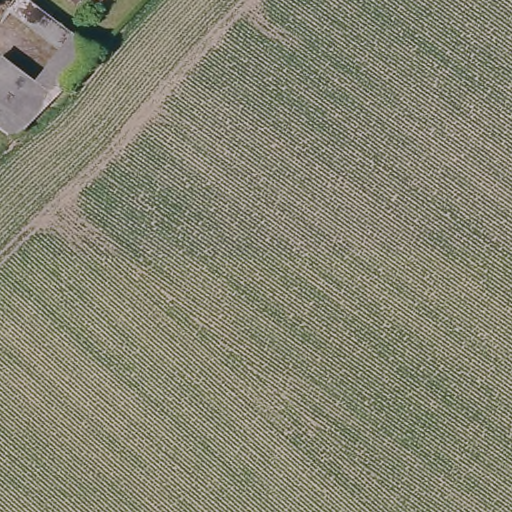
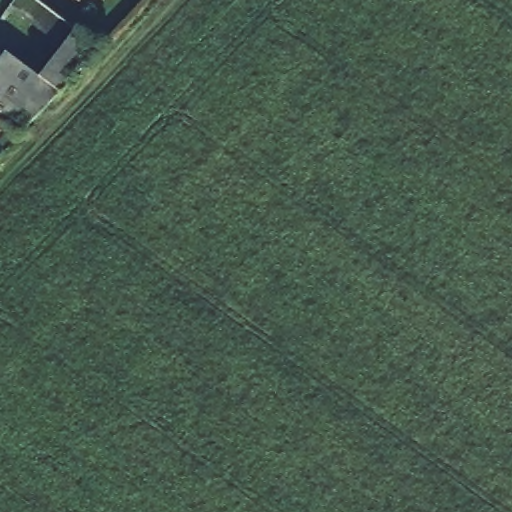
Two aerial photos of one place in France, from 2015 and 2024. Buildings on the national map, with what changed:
unchanged [(66,0),(77,0),(72,6),(66,0)]
unchanged [(30,86),(67,38),(89,54),(92,56),(50,101),(30,86)]
unchanged [(0,135),(0,62),(30,86),(50,101),(10,142),(7,140),(0,135)]

